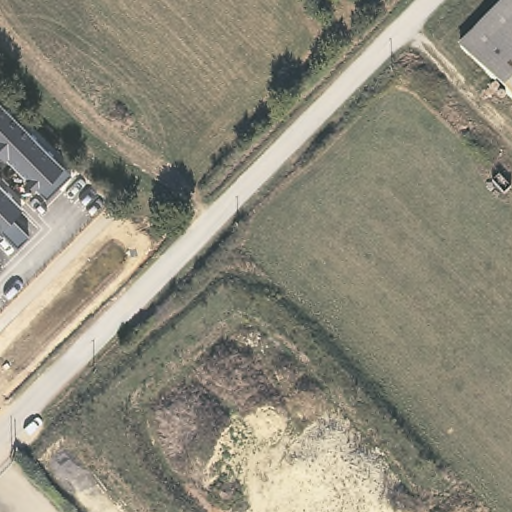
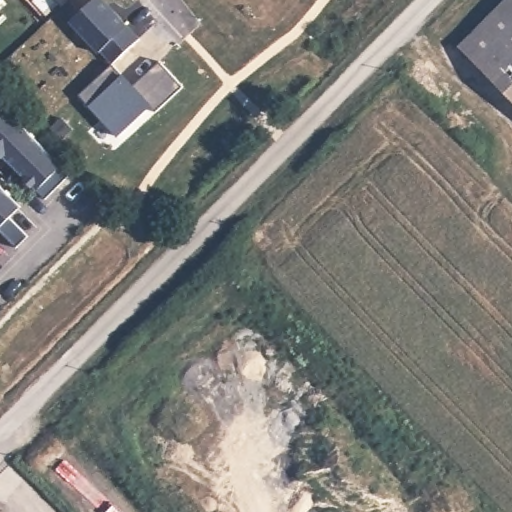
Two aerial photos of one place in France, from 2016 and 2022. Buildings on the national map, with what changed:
new [(112,62),(98,50),(70,21),(94,0),(103,0),(127,24),(139,38),(112,62)]
unchanged [(505,0),(512,0),(512,105),(456,49),(505,0)]
new [(156,110),(150,105),(117,135),(91,105),(81,94),(112,66),(122,77),(133,89),(161,64),(182,86),(156,110)]
unchanged [(71,175),(47,199),(37,190),(26,179),(26,178),(5,156),(4,158),(0,154),(0,103),(63,165),(71,175)]
unchanged [(17,247),(0,231),(0,186),(21,207),(11,218),(29,236),(17,247)]

